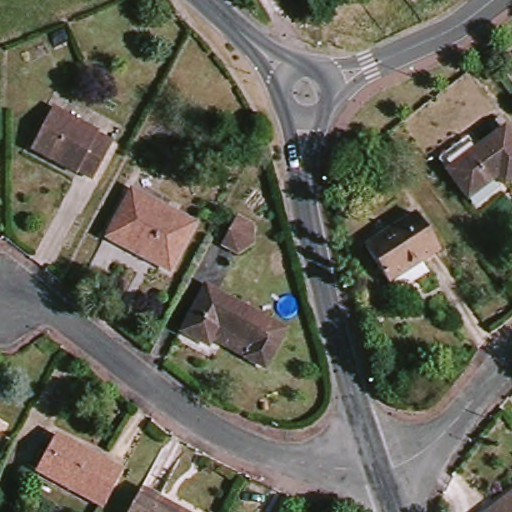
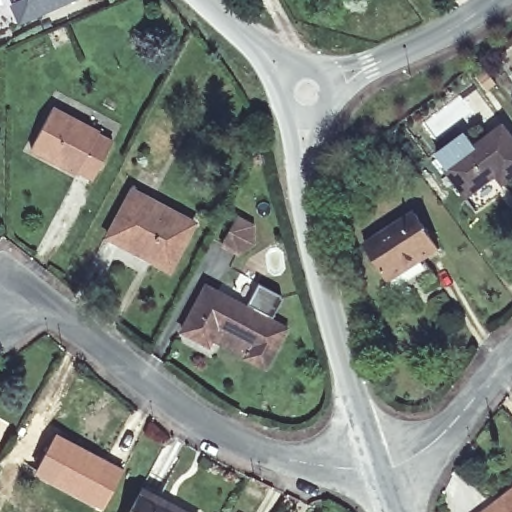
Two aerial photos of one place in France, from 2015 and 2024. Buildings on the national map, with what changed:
new [(20,19),(13,0),(14,0),(64,0),(20,19)]
unchanged [(52,109),(99,132),(98,134),(112,141),(94,179),(77,171),(76,173),(31,150),(52,109)]
unchanged [(497,177),(470,198),(450,171),(505,130),(512,139),(512,180),(504,186),(497,177)]
unchanged [(192,224),(168,270),(106,237),(131,191),(192,224)]
unchanged [(249,225),(250,244),(235,251),(219,244),(234,216),(249,225)]
unchanged [(390,288),(367,255),(416,220),(440,255),(390,288)]
unchanged [(207,346),(181,332),(205,287),(285,329),(265,367),(242,355),(211,340),(207,346)]
unchanged [(103,507),(35,471),(55,435),(122,471),(103,507)]
unchanged [(180,512),(129,512),(140,490),(180,512)]
unchanged [(512,512),(488,512),(512,495),(512,512)]

